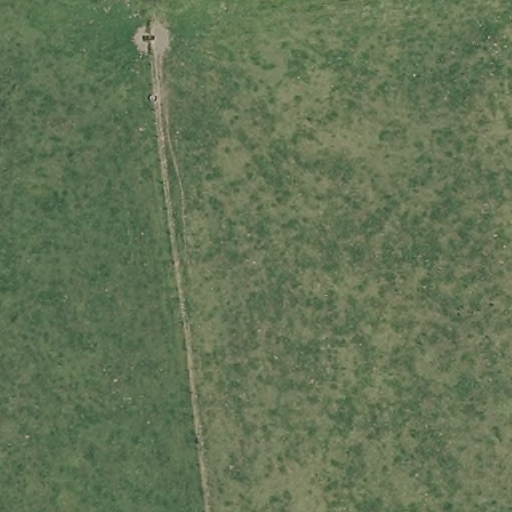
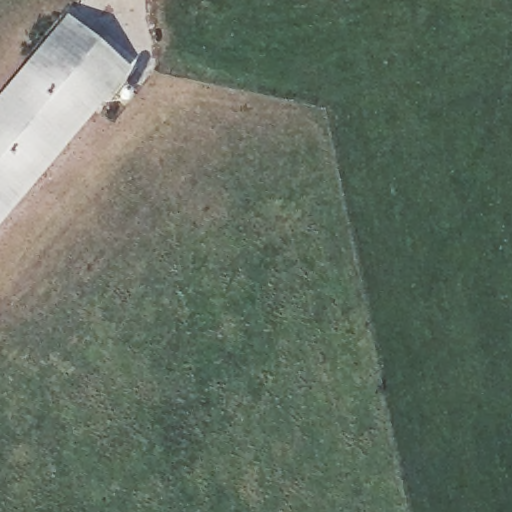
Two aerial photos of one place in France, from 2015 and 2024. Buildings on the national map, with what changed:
new [(71,19),(126,66),(0,217),(0,104),(71,19)]

